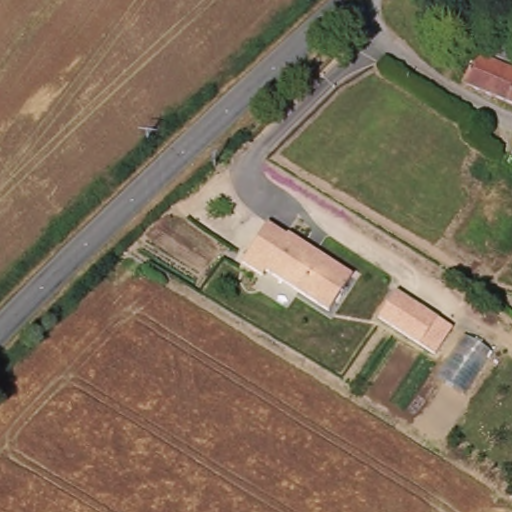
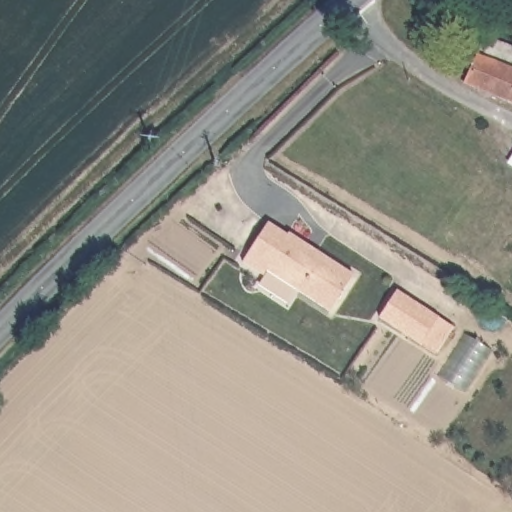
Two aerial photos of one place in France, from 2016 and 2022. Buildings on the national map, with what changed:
unchanged [(505,14),(496,34),(484,29),(495,9),(505,14)]
unchanged [(512,63),(495,55),(501,42),(512,47),(512,63)]
unchanged [(512,102),(463,81),(470,68),(479,70),(484,59),(512,71),(512,102)]
unchanged [(512,164),(512,167),(510,166),(512,164)]
unchanged [(266,271),(261,276),(241,263),(268,223),(287,236),(289,233),(351,275),(327,312),(266,271)]
unchanged [(378,320),(397,292),(451,329),(434,355),(378,320)]

